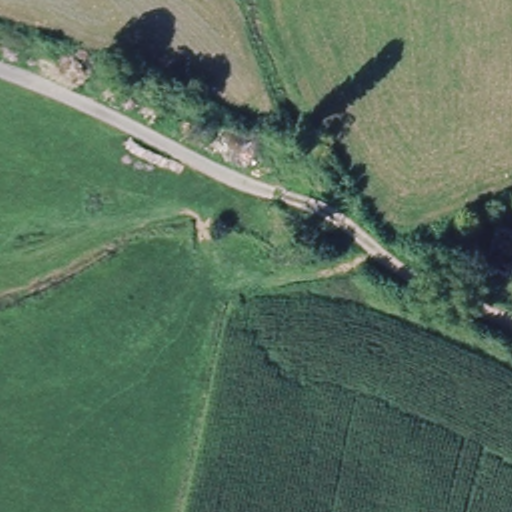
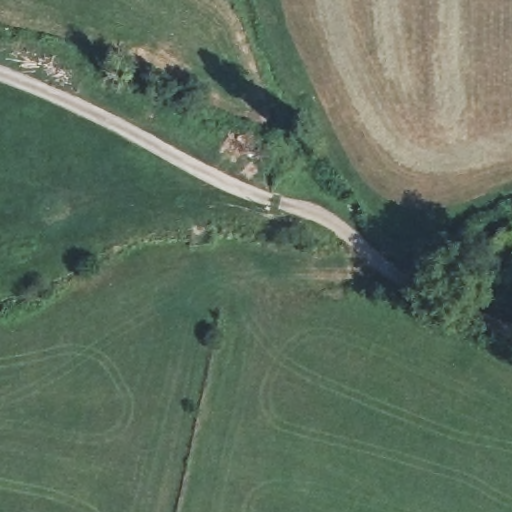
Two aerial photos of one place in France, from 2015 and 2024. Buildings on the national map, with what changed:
unchanged [(512,237),(512,278),(508,285),(485,273),(504,233),(512,237)]

